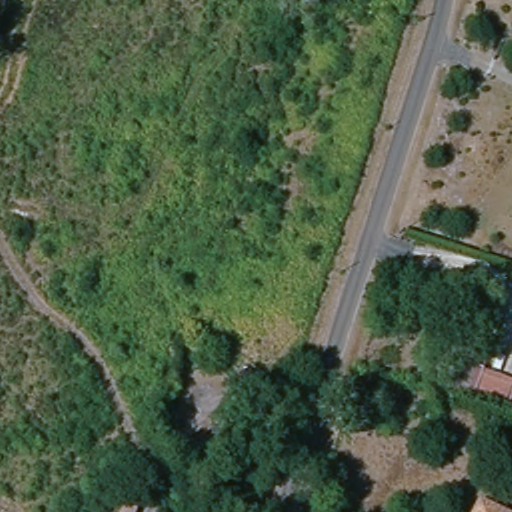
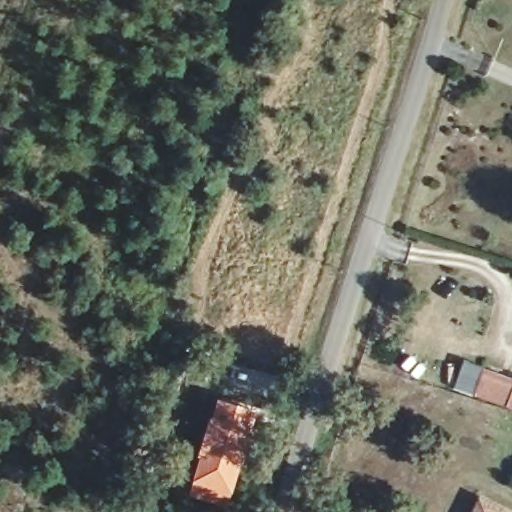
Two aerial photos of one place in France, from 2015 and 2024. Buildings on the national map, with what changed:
new [(202,441),(217,397),(260,410),(250,443),(228,506),(190,492),(202,441)]
unchanged [(481,501),(504,512),(476,512),(481,501)]

